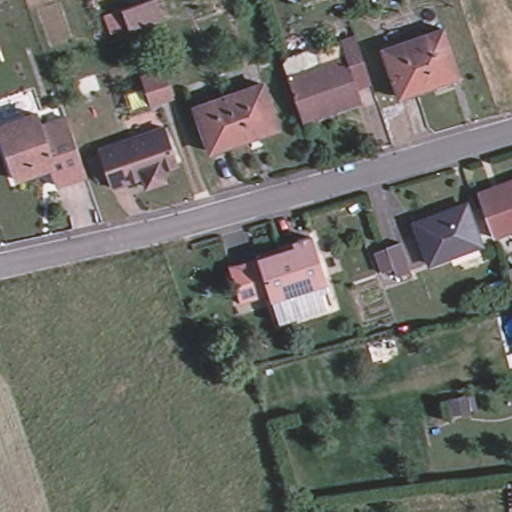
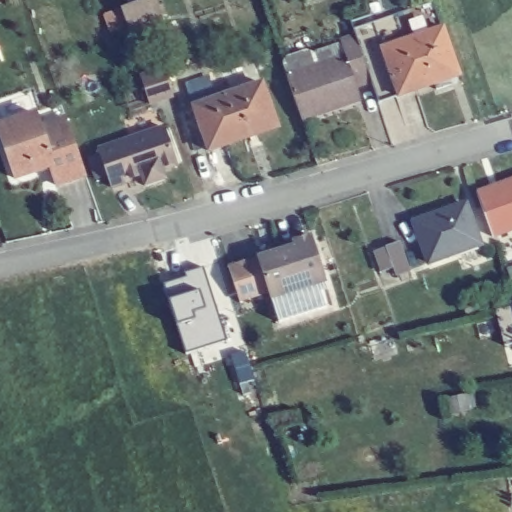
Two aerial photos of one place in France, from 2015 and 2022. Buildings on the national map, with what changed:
unchanged [(110,16),(127,11),(161,0),(168,21),(134,32),(132,28),(116,34),(110,16)]
unchanged [(293,2),(293,0),(301,0),(293,2)]
unchanged [(447,32),(460,77),(397,94),(385,50),(447,32)]
unchanged [(288,77),(287,74),(291,65),(308,59),(316,62),(320,74),(350,63),(345,51),(359,46),(373,87),(359,91),(363,105),(305,126),(290,84),(288,77)]
unchanged [(98,69),(105,86),(87,92),(81,74),(98,69)]
unchanged [(177,99),(153,107),(143,78),(167,70),(177,99)]
unchanged [(267,86),(280,128),(213,152),(198,109),(267,86)]
unchanged [(10,187),(0,156),(0,131),(30,122),(35,134),(66,124),(72,140),(86,182),(54,192),(48,175),(36,179),(10,187)]
unchanged [(140,140),(140,139),(163,132),(176,170),(162,174),(165,185),(157,188),(140,140)]
unchanged [(90,161),(101,157),(100,152),(140,140),(157,188),(147,191),(143,181),(112,192),(108,180),(97,184),(90,161)]
unchanged [(512,184),(512,233),(494,240),(478,195),(512,184)]
unchanged [(465,206),(479,246),(430,264),(415,224),(465,206)]
unchanged [(325,283),(320,285),(271,300),(268,292),(258,258),(280,252),(278,246),(294,241),(310,236),(325,283)]
unchanged [(377,254),(388,250),(387,249),(401,245),(410,272),(397,277),(395,270),(384,274),(377,254)]
unchanged [(268,292),(239,302),(228,268),(258,258),(268,292)]
new [(187,277),(185,272),(204,267),(227,340),(186,352),(163,283),(187,277)]
unchanged [(326,307),(278,322),(271,300),(320,285),(326,307)]

